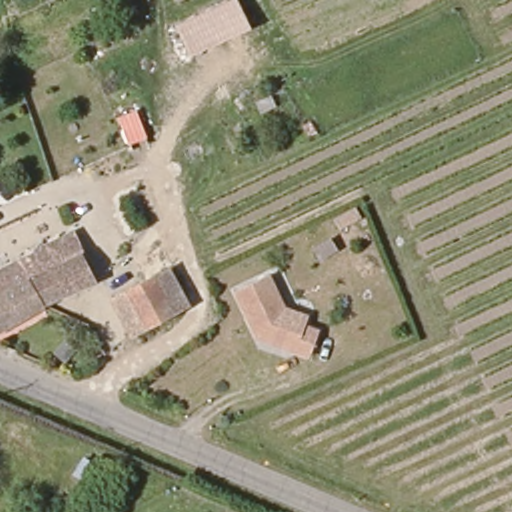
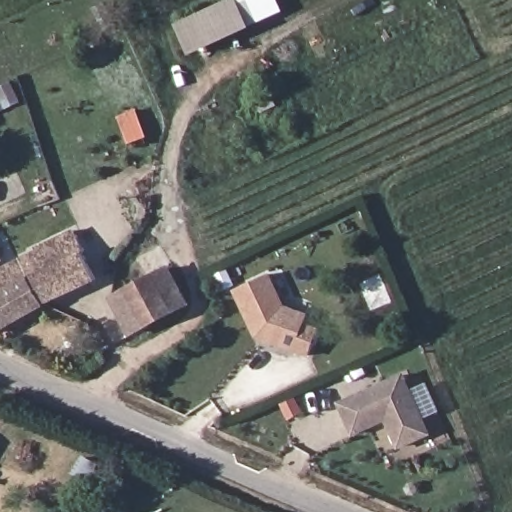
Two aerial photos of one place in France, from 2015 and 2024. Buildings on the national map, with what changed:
unchanged [(190,57),(176,25),(232,0),(237,0),(251,30),(190,57)]
unchanged [(27,230),(10,238),(6,229),(22,221),(27,230)]
unchanged [(0,299),(0,272),(41,252),(39,250),(33,238),(62,222),(65,227),(58,230),(62,237),(71,232),(82,253),(79,255),(92,280),(52,301),(39,280),(0,299)]
unchanged [(0,242),(0,237),(2,241),(0,242)]
unchanged [(119,299),(172,272),(190,306),(137,335),(119,299)]
unchanged [(263,275),(281,309),(305,317),(301,326),(316,331),(306,357),(259,340),(255,331),(251,332),(232,290),(263,275)]
unchanged [(52,301),(0,329),(0,299),(39,280),(52,301)]
new [(398,450),(387,422),(353,437),(339,403),(405,373),(433,435),(398,450)]

